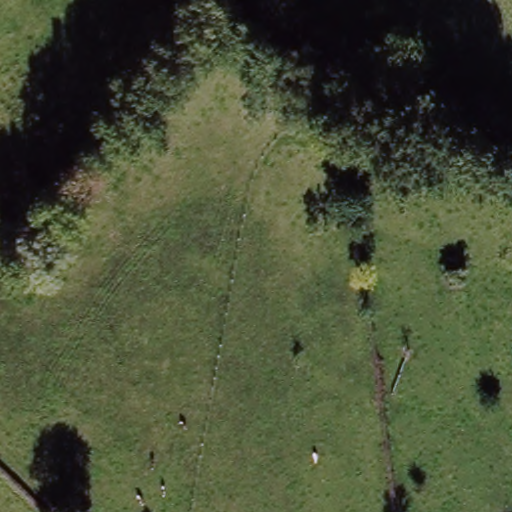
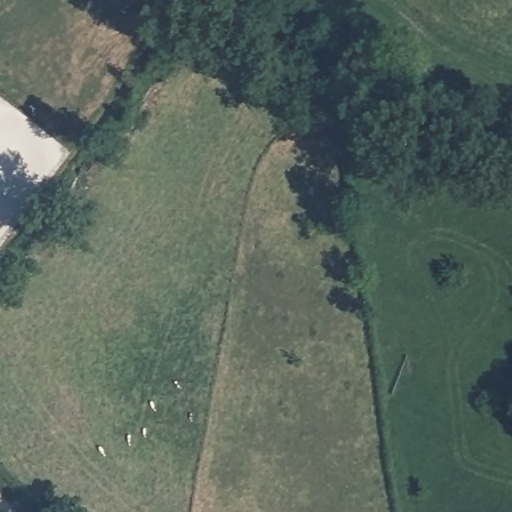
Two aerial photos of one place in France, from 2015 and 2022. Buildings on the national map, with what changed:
[]

